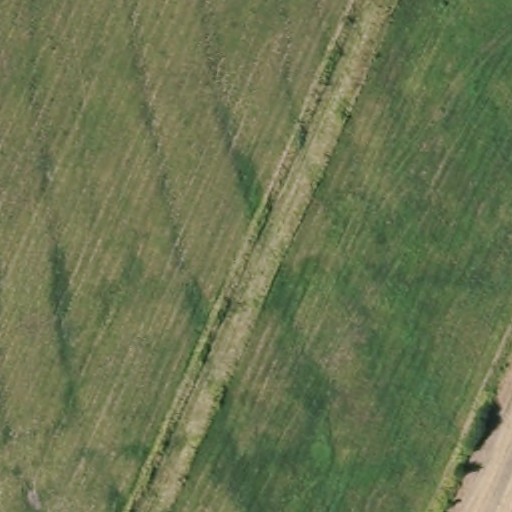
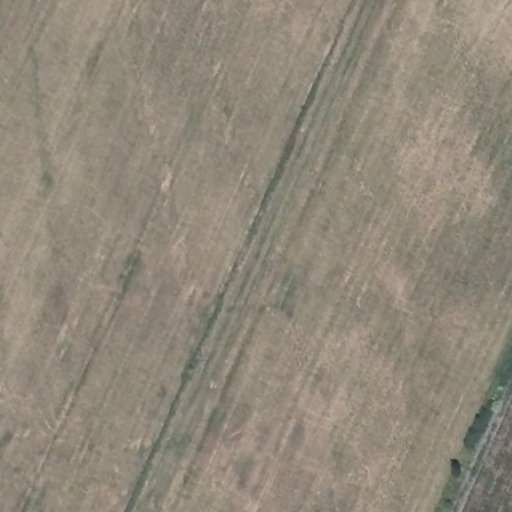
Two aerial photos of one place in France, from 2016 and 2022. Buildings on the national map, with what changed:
[]

